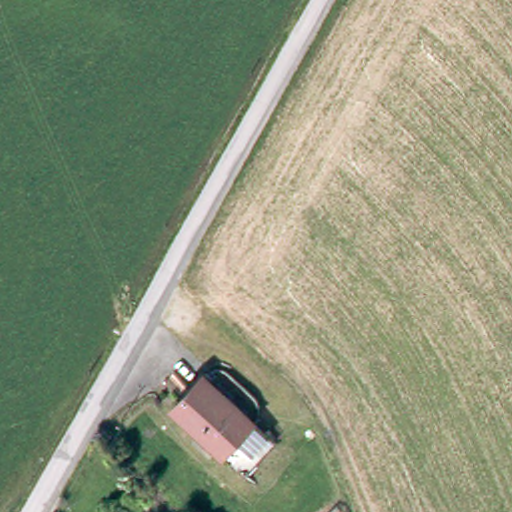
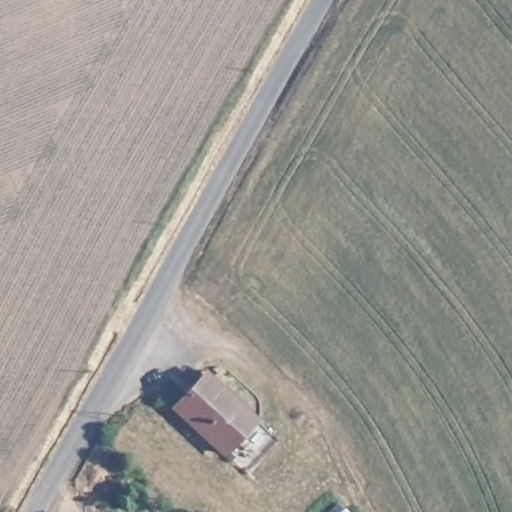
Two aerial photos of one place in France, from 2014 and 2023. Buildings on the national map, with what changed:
unchanged [(168,398),(196,366),(269,434),(240,466),(168,398)]

